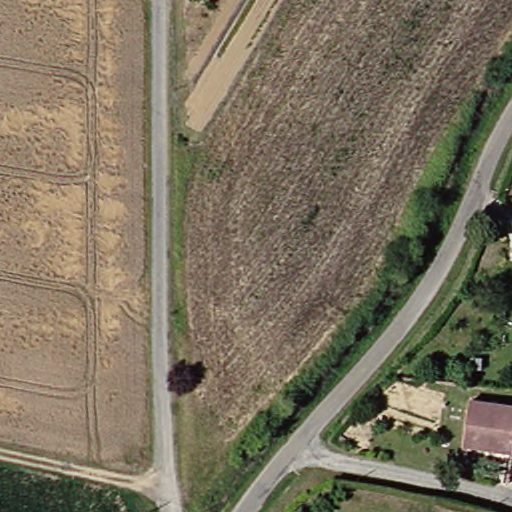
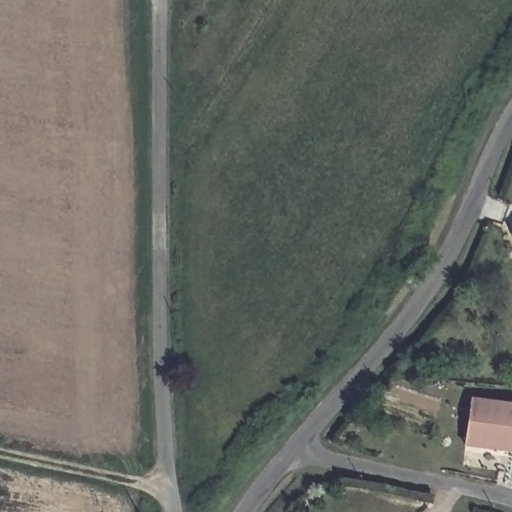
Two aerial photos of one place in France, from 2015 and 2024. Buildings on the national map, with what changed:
unchanged [(488,227),(503,229),(501,247),(481,245),(488,227)]
unchanged [(469,404),(512,406),(512,451),(468,449),(469,404)]

